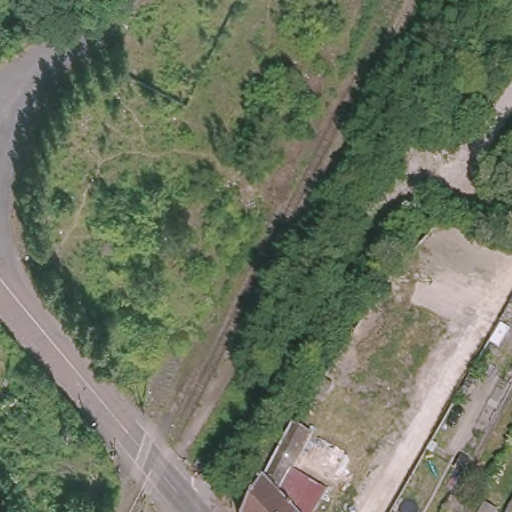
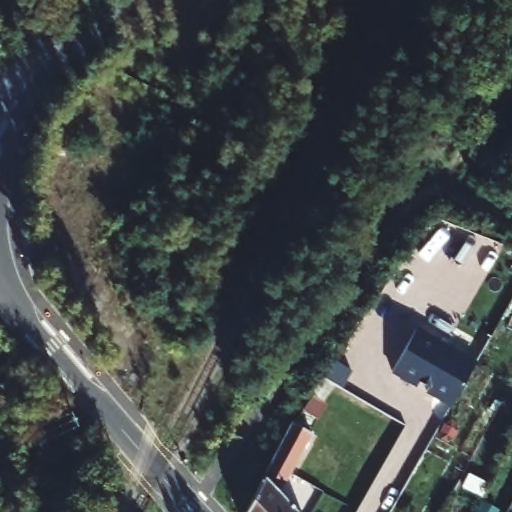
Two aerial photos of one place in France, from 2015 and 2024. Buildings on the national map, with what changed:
new [(391,371),(417,327),(476,362),(450,405),(391,371)]
unchanged [(321,401),(310,394),(321,378),(331,385),(321,401)]
unchanged [(295,472),(297,467),(327,483),(311,512),(243,512),(292,419),(311,429),(290,469),(295,472)]

